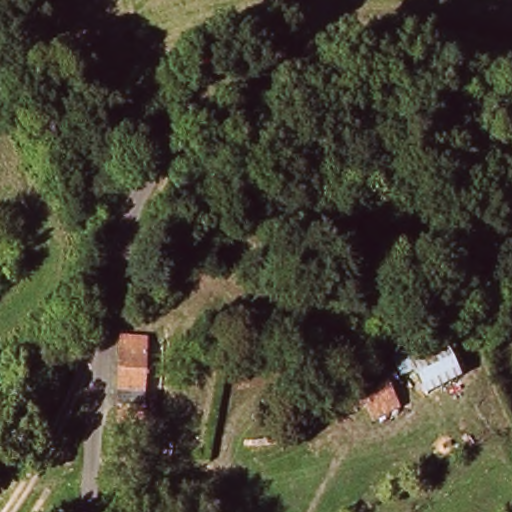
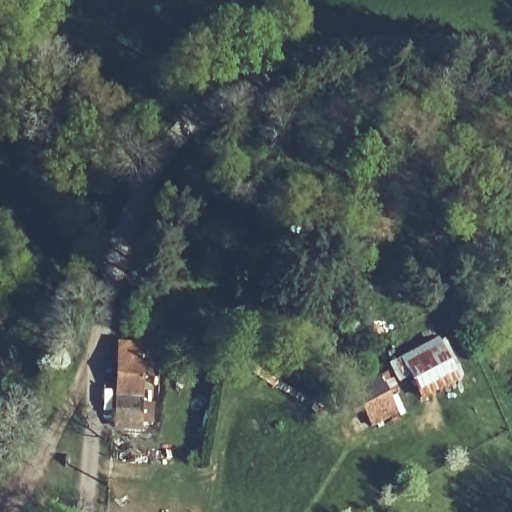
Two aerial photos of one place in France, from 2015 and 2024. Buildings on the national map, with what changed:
unchanged [(113,419),(114,392),(118,353),(119,339),(145,341),(144,356),(140,393),(138,421),(113,419)]
unchanged [(458,383),(421,403),(405,366),(440,351),(458,383)]
unchanged [(399,393),(389,396),(400,416),(374,432),(364,414),(354,417),(343,396),(390,373),(399,393)]

